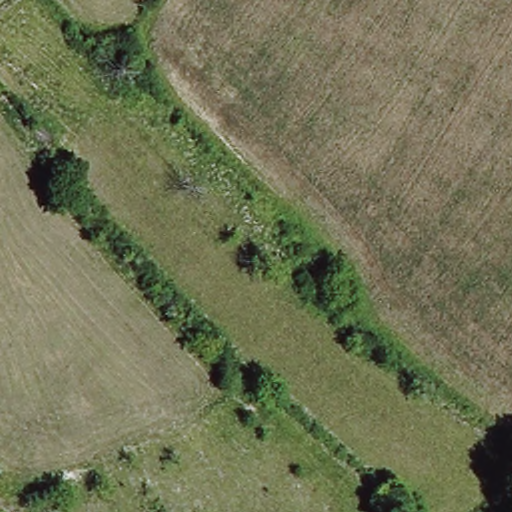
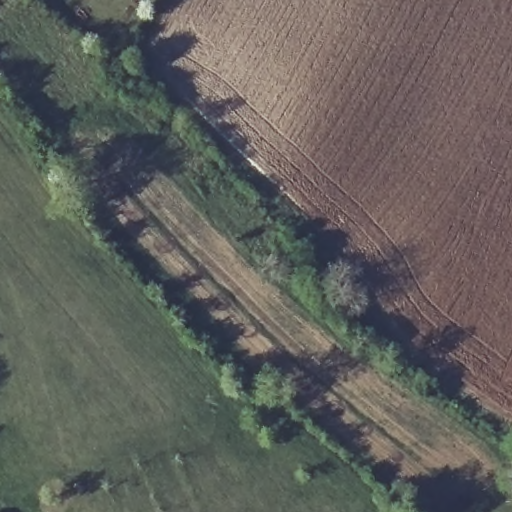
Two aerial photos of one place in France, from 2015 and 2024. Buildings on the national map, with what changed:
unchanged [(319,295),(303,277),(294,268),(304,258),(314,267),(331,284),(319,295)]

